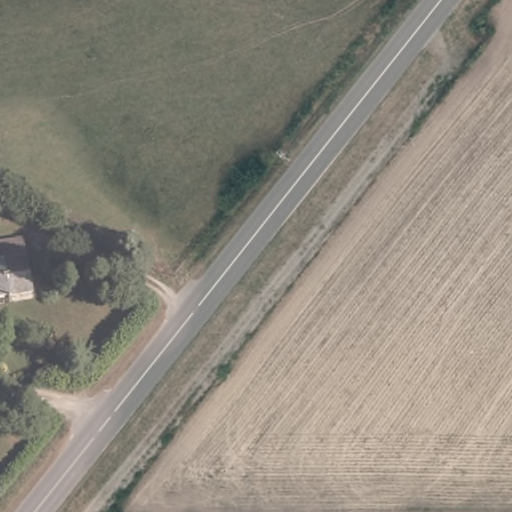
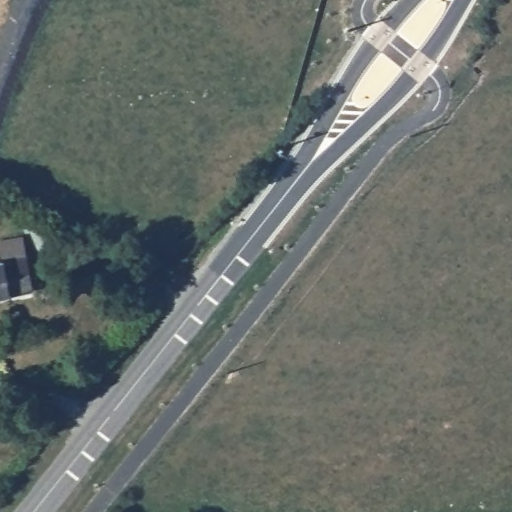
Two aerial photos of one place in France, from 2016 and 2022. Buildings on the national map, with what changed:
unchanged [(3,260),(0,242),(20,239),(32,289),(9,293),(3,260)]
unchanged [(0,295),(0,260),(3,260),(9,293),(0,295)]

